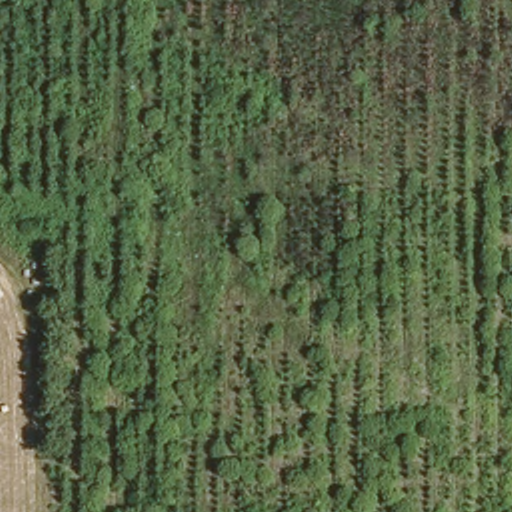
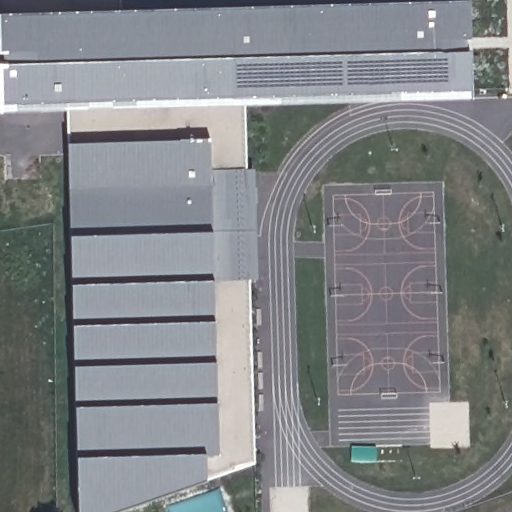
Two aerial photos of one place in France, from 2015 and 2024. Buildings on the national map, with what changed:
new [(123,4),(285,0),(471,0),(474,87),(247,93),(257,470),(110,512),(80,512),(69,97),(1,99),(0,79),(0,0),(122,0),(123,4)]
new [(123,4),(122,0),(285,0),(123,4)]

